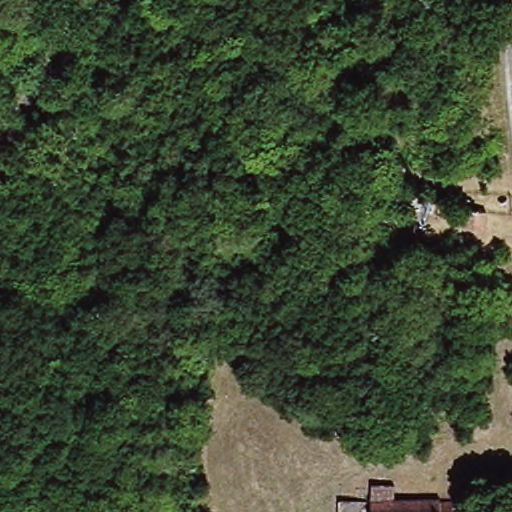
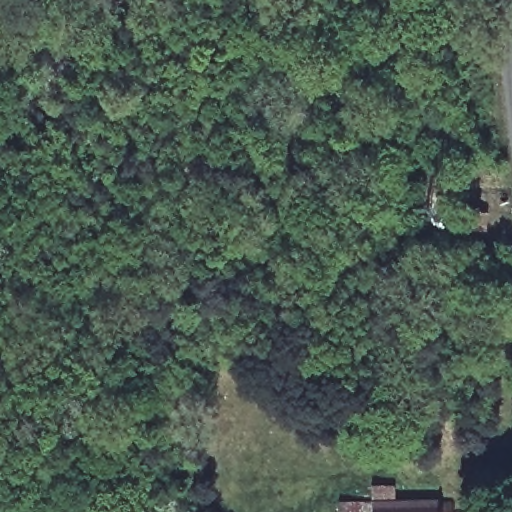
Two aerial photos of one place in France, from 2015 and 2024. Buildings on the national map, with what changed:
unchanged [(463,219),(464,215),(465,210),(483,211),(485,211),(483,220),(483,226),(482,229),(476,228),(462,227),(463,224),(463,219)]
unchanged [(362,487),(383,486),(384,501),(430,500),(429,503),(442,503),(442,510),(452,510),(454,512),(362,512),(362,487)]

